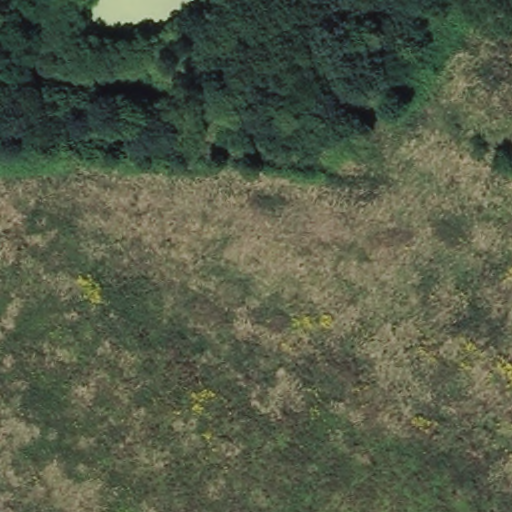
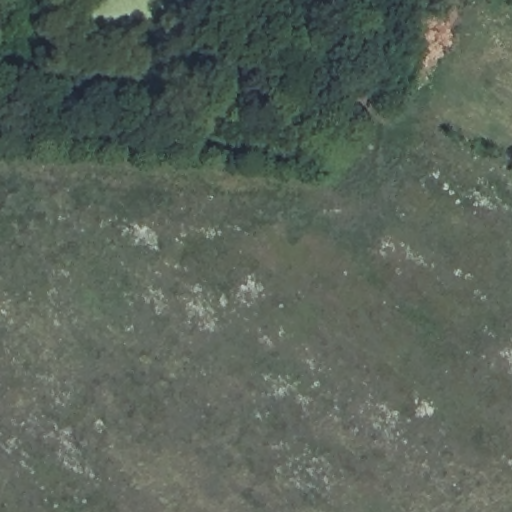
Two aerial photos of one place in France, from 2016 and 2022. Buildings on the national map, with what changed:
[]

